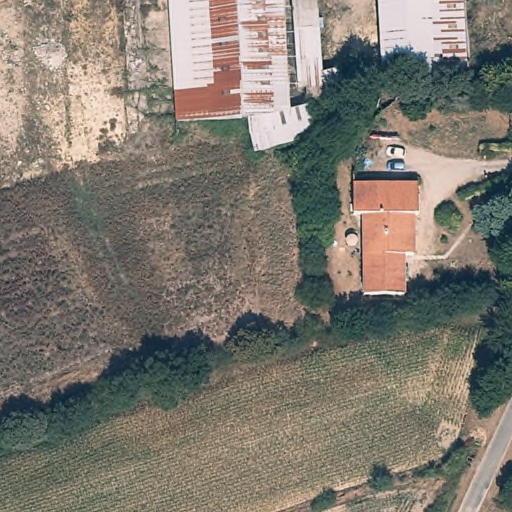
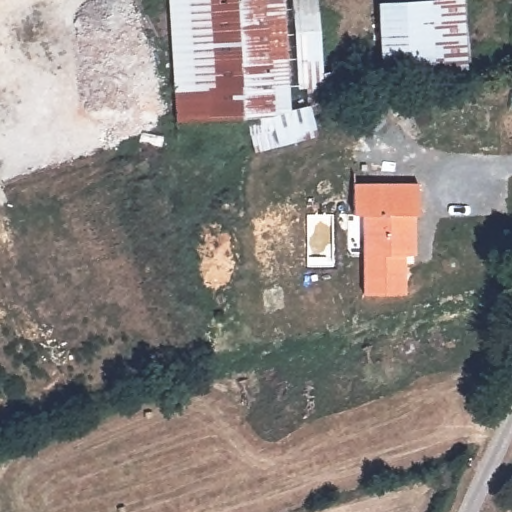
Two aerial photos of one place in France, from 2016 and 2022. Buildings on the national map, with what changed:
unchanged [(177,121),(175,92),(169,0),(282,0),(288,113),(249,116),(177,121)]
unchanged [(302,88),(294,0),(321,0),(328,78),(329,86),(312,87),(302,88)]
unchanged [(430,2),(435,0),(464,0),(467,83),(382,89),(382,80),(376,4),(376,3),(430,2)]
unchanged [(382,80),(385,90),(318,109),(312,87),(329,86),(328,78),(378,65),(382,80)]
unchanged [(320,146),(251,151),(250,137),(249,116),(288,113),(317,111),(318,122),(320,146)]
unchanged [(352,217),(352,185),(420,187),(418,219),(415,219),(413,261),(405,261),(403,300),(362,299),(362,217),(352,217)]

